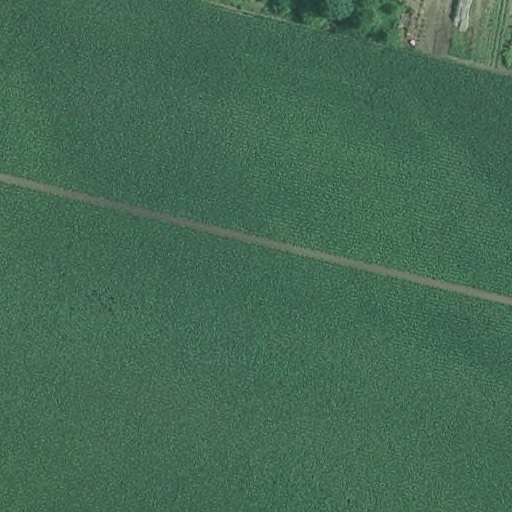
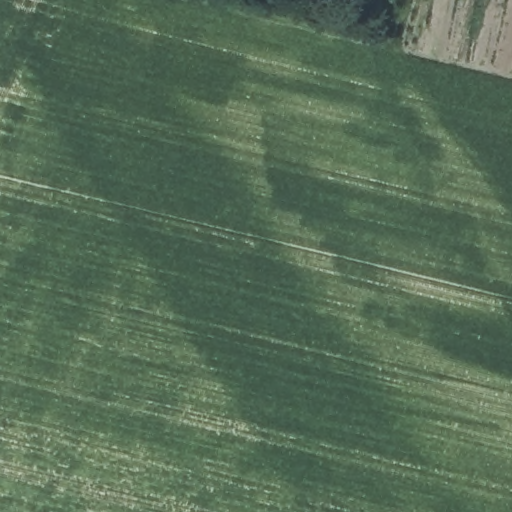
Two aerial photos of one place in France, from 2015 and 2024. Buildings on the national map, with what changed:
unchanged [(358,0),(361,0),(359,1),(358,0)]

